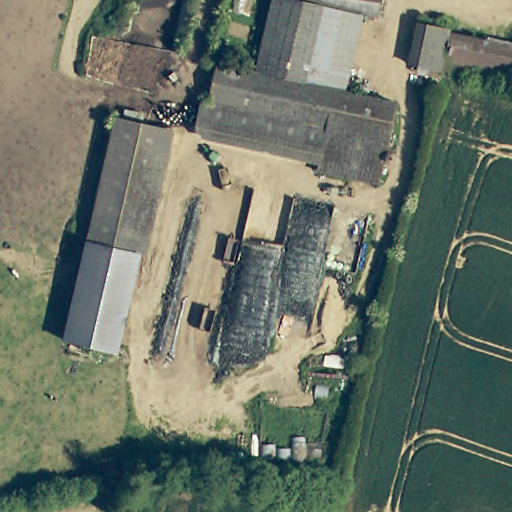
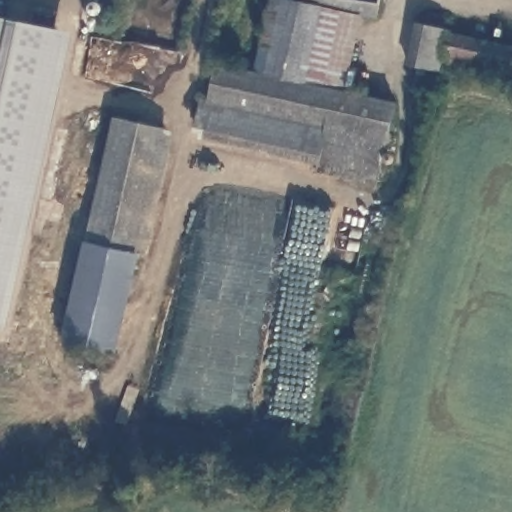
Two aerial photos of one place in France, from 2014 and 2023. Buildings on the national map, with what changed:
unchanged [(383,0),(378,26),(363,22),(273,4),(274,0),(383,0)]
unchanged [(363,22),(347,97),(397,109),(380,192),(321,179),(323,162),(196,132),(202,105),(210,106),(217,71),(256,79),(273,4),(363,22)]
new [(6,328),(0,327),(0,15),(72,31),(6,328)]
unchanged [(440,79),(442,71),(418,65),(427,24),(462,31),(462,35),(453,74),(452,82),(440,79)]
unchanged [(453,74),(462,35),(512,45),(512,86),(453,74)]
unchanged [(153,129),(172,133),(145,252),(121,357),(71,346),(122,122),(153,129)]

